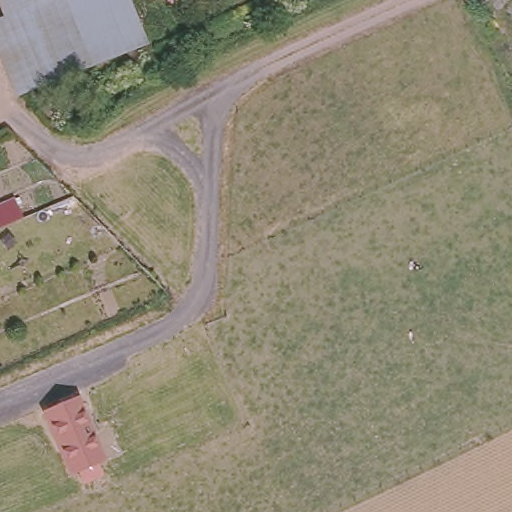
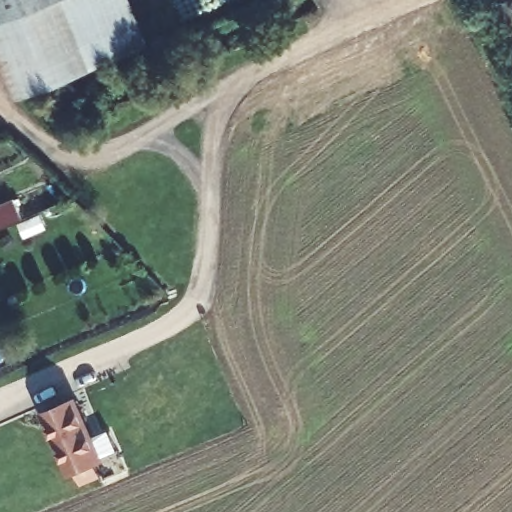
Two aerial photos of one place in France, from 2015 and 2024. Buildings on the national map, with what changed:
unchanged [(0,18),(2,17),(0,14),(0,0),(125,0),(142,42),(14,94),(0,63),(0,18)]
unchanged [(22,214),(0,223),(0,202),(14,196),(22,214)]
unchanged [(97,465),(102,476),(82,484),(77,473),(70,477),(42,413),(79,396),(105,461),(97,465)]

